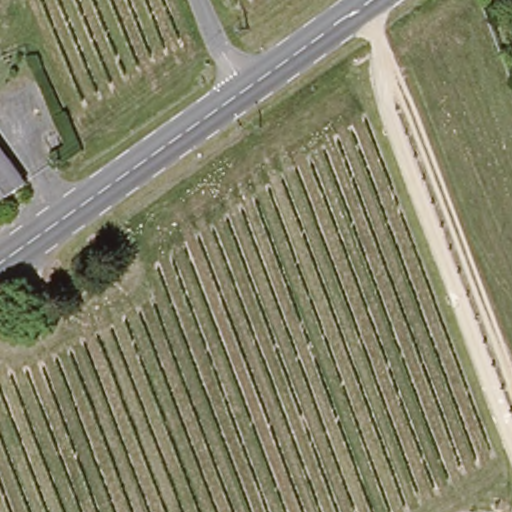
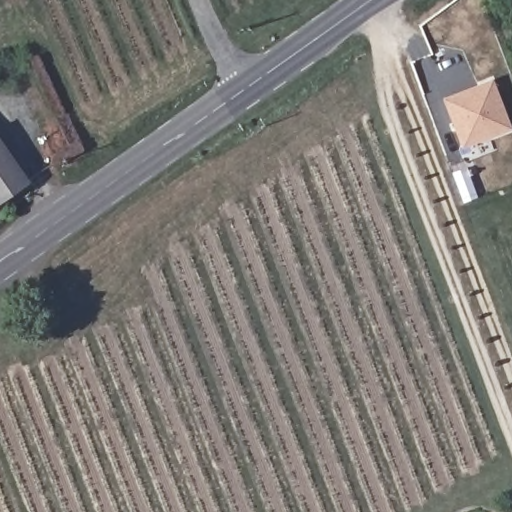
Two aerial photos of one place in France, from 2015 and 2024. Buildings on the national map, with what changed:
new [(510,130),(461,150),(442,98),(492,79),(494,84),(510,130)]
unchanged [(24,185),(0,201),(0,151),(24,185)]

